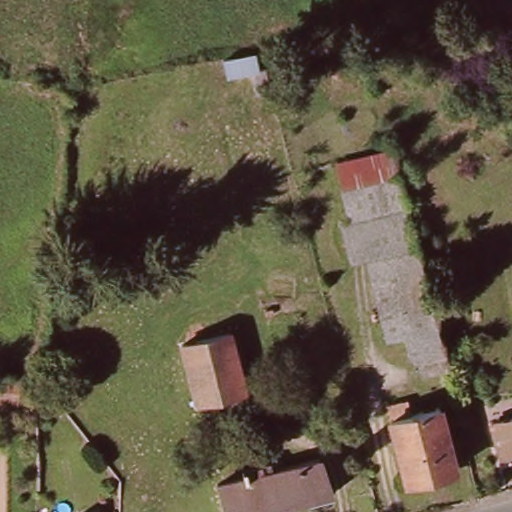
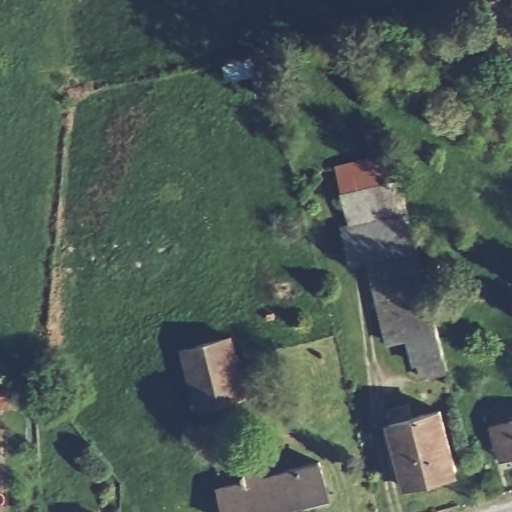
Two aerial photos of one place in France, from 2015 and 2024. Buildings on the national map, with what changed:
unchanged [(267,87),(254,90),(248,70),(225,75),(222,63),(257,53),(267,87)]
unchanged [(395,179),(338,194),(331,169),(389,155),(395,179)]
unchanged [(413,365),(406,340),(387,345),(365,264),(347,268),(337,233),(347,230),(338,194),(395,179),(440,358),(413,365)]
unchanged [(231,337),(242,394),(195,406),(180,349),(231,337)]
unchanged [(0,402),(0,377),(17,378),(13,404),(0,402)]
unchanged [(389,429),(392,428),(389,416),(408,410),(412,423),(440,416),(455,478),(405,491),(389,429)]
unchanged [(512,423),(512,458),(499,462),(488,431),(512,423)]
unchanged [(242,470),(265,466),(267,474),(320,461),(328,495),(254,512),(227,512),(220,486),(243,480),(242,470)]

